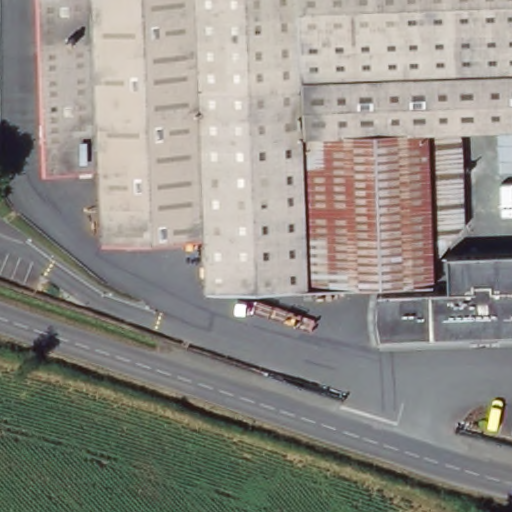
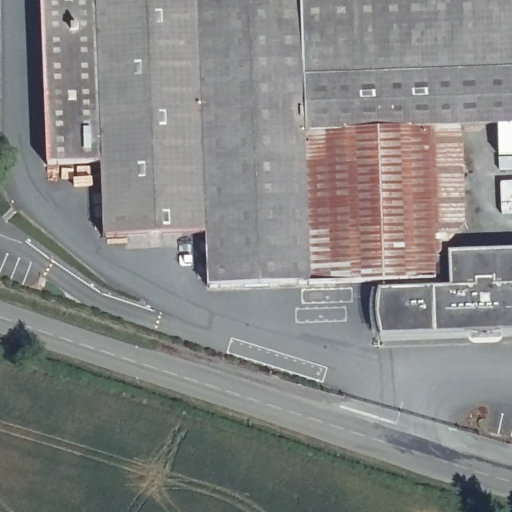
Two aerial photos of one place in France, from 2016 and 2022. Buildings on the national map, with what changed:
unchanged [(212,288),(210,234),(177,235),(105,238),(102,163),(47,166),(41,0),(512,0),(512,333),(380,338),(377,329),(375,321),(375,314),(375,306),(376,299),(377,289),(380,283),(292,285),(212,288)]

